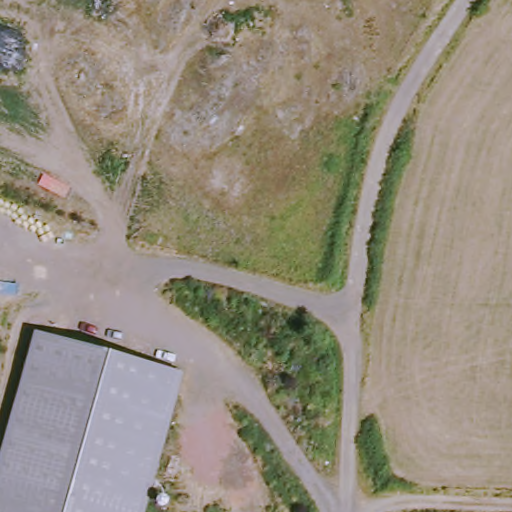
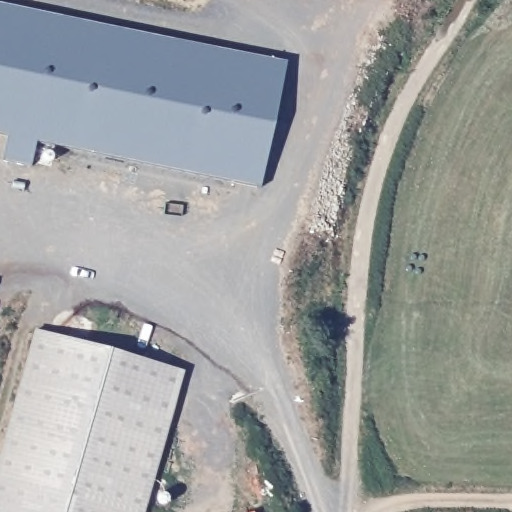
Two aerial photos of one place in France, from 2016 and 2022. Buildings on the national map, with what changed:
new [(259,190),(35,141),(31,165),(2,160),(8,136),(0,134),(0,4),(285,65),(259,190)]
unchanged [(185,372),(147,512),(0,512),(0,471),(38,332),(185,372)]

